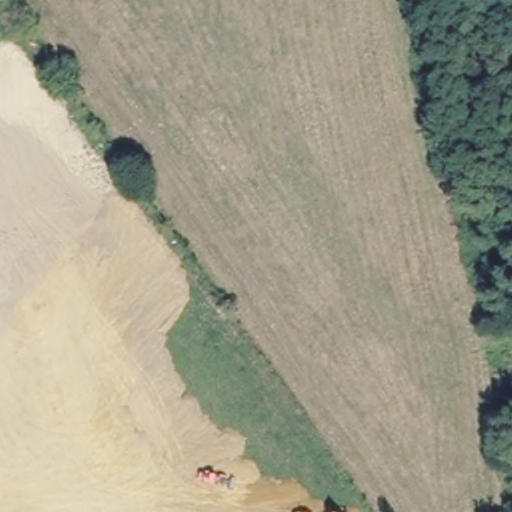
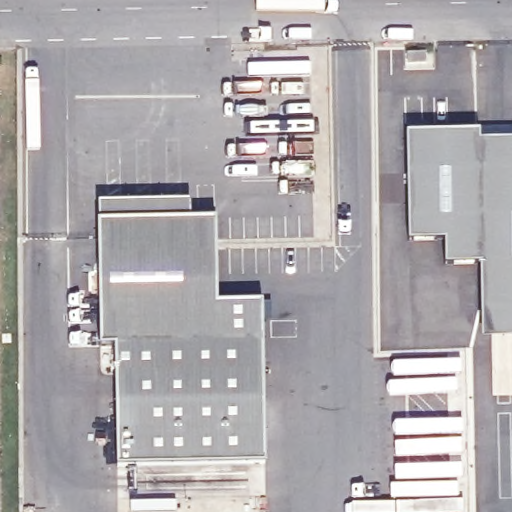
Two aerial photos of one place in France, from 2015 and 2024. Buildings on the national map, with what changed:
new [(485,104),(505,104),(512,99),(512,139),(479,139),(478,129),(477,113),(484,113),(485,104)]
new [(479,139),(512,139),(512,338),(479,338),(477,266),(442,267),(441,242),(407,242),(404,132),(478,129),(479,139)]
new [(215,219),(217,282),(172,220),(215,219)]
new [(217,282),(217,303),(232,302),(262,302),(263,346),(266,465),(116,467),(115,347),(100,347),(97,222),(172,220),(217,282)]
new [(130,502),(176,502),(176,512),(130,512),(130,502)]

